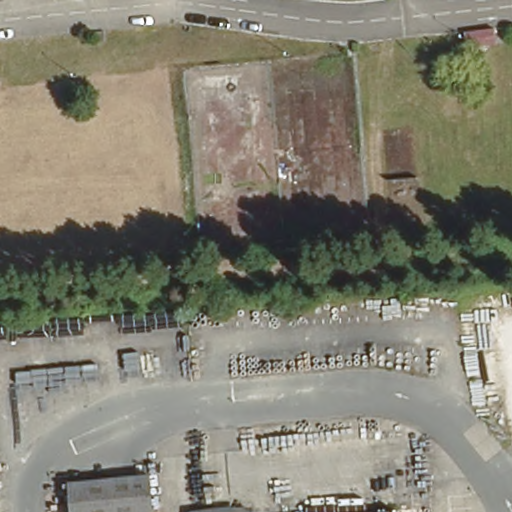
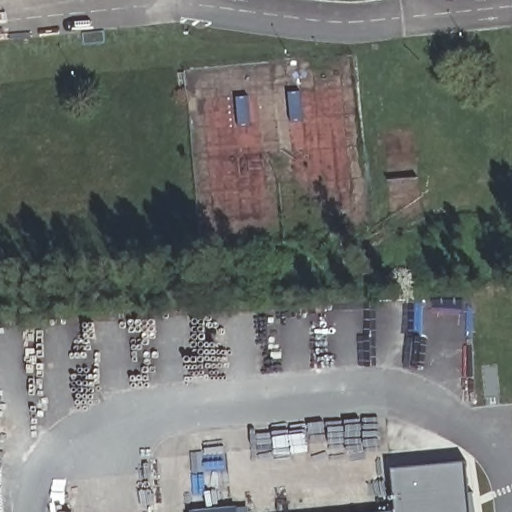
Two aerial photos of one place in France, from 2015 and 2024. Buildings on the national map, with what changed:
demolished [(464,50),(463,32),(499,27),(501,45),(464,50)]
new [(391,470),(465,462),(470,512),(381,512),(395,510),(391,470)]
unchanged [(72,494),(72,486),(152,479),(155,512),(71,512),(69,494),(72,494)]
new [(236,507),(249,506),(249,512),(188,512),(188,511),(236,507)]
unchanged [(238,512),(226,512),(238,511),(238,512)]

